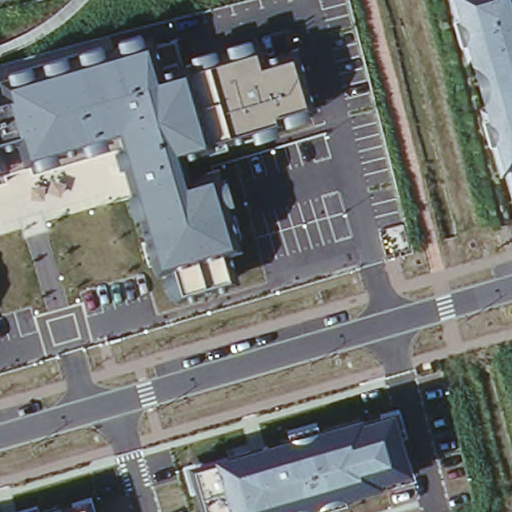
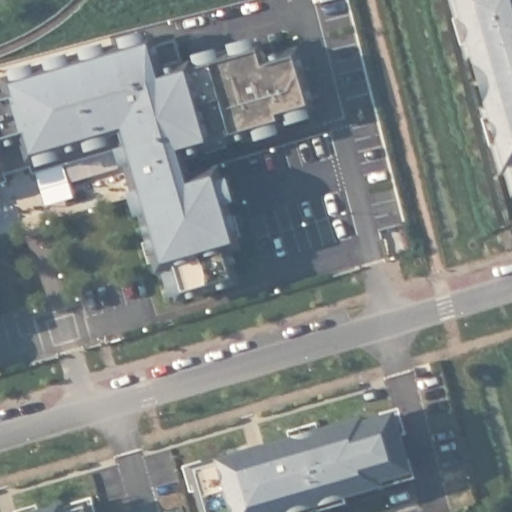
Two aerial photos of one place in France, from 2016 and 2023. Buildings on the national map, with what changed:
unchanged [(512,195),(505,165),(500,166),(451,0),(512,0),(512,194),(512,195)]
unchanged [(161,264),(154,265),(116,136),(27,164),(21,142),(0,148),(0,87),(8,85),(3,72),(144,31),(148,42),(156,40),(162,69),(192,61),(191,55),(251,39),(257,56),(296,45),(315,107),(305,110),(307,117),(278,126),(280,132),(254,140),(252,135),(207,147),(178,155),(185,180),(220,171),(240,244),(227,246),(235,276),(172,296),(161,264)]
unchanged [(376,482),(377,487),(294,512),(203,512),(191,467),(216,459),(215,454),(358,415),(359,418),(393,408),(411,472),(376,482)]
unchanged [(62,502),(65,510),(83,505),(85,512),(29,512),(62,502)]

